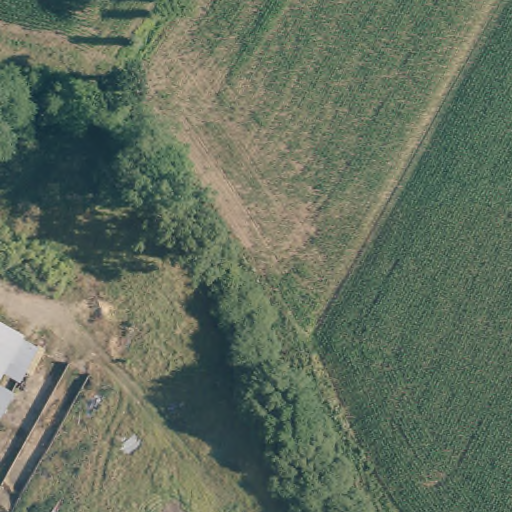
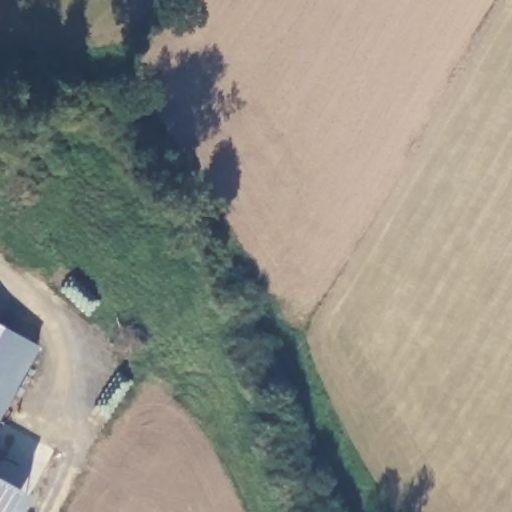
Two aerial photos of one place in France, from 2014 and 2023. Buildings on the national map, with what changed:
unchanged [(36,352),(0,408),(0,329),(20,342),(36,352)]
new [(0,512),(0,478),(29,494),(19,512),(0,512)]

